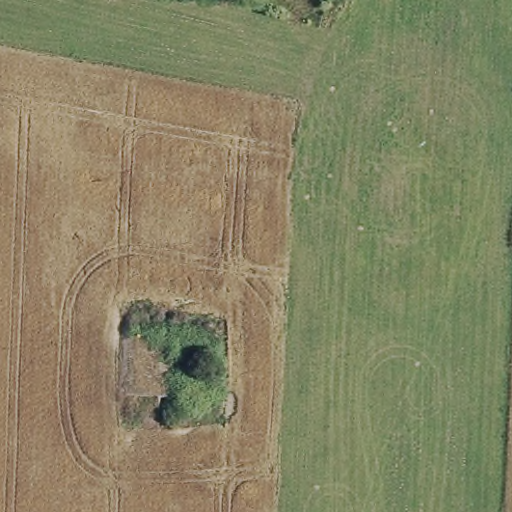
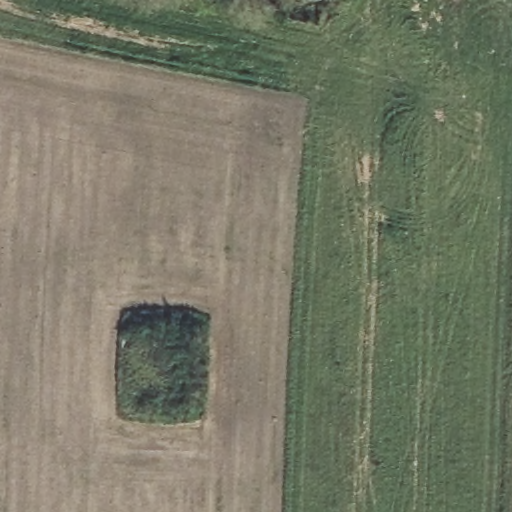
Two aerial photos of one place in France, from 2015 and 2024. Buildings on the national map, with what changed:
unchanged [(120,330),(169,329),(170,352),(191,354),(194,414),(170,415),(170,398),(123,392),(120,330)]

